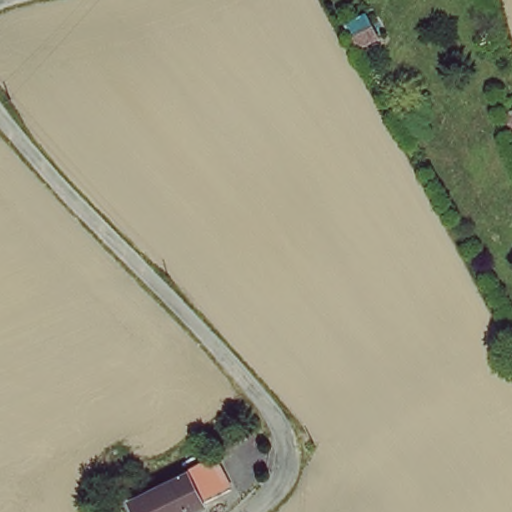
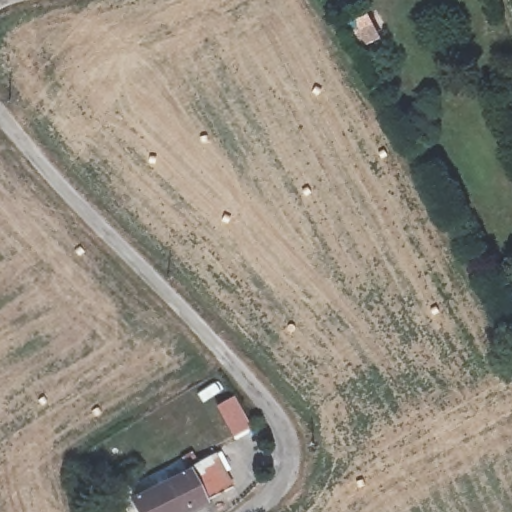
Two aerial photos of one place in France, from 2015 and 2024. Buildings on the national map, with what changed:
unchanged [(341,23),(366,11),(379,39),(355,50),(341,23)]
unchanged [(216,452),(232,484),(180,512),(139,512),(133,500),(164,482),(216,452)]

